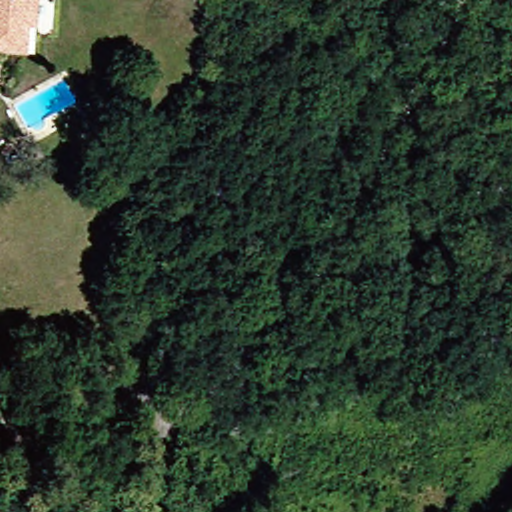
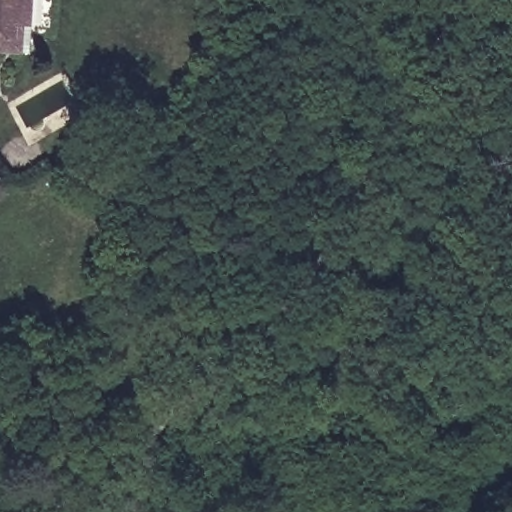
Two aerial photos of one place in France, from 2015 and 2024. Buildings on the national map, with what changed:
unchanged [(23,25),(21,56),(0,56),(0,0),(31,0),(31,26),(23,25)]

